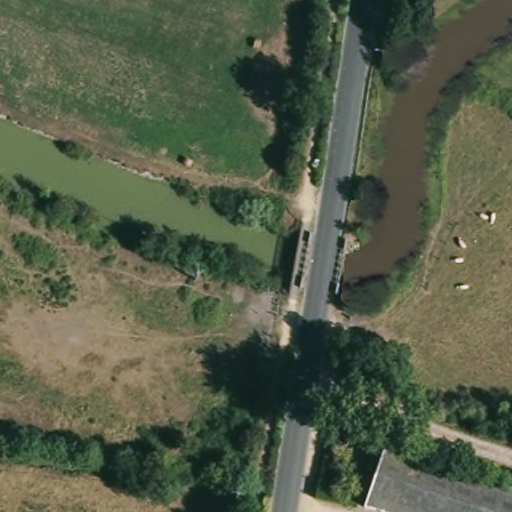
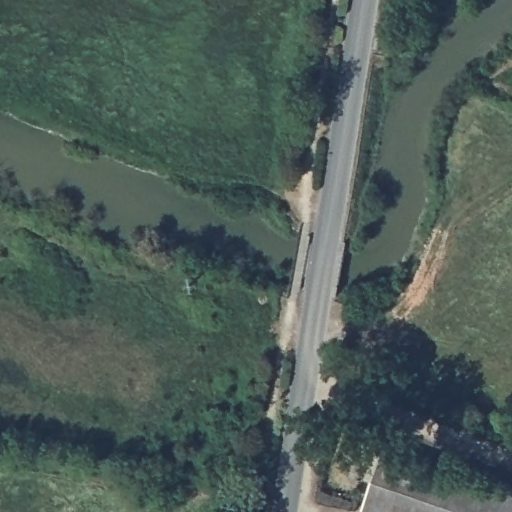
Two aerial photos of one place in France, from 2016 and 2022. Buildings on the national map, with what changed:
unchanged [(387,449),(512,491),(512,512),(380,512),(367,508),(387,449)]

